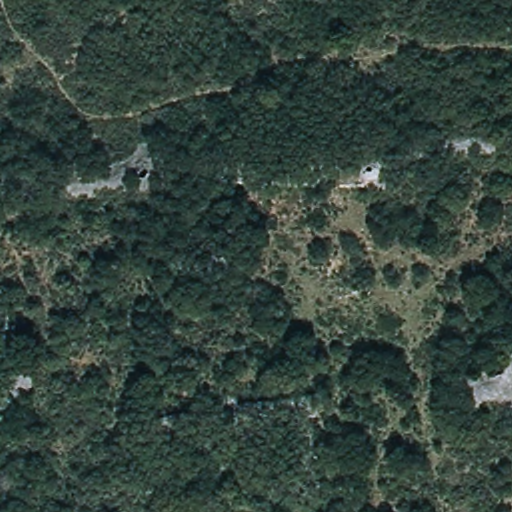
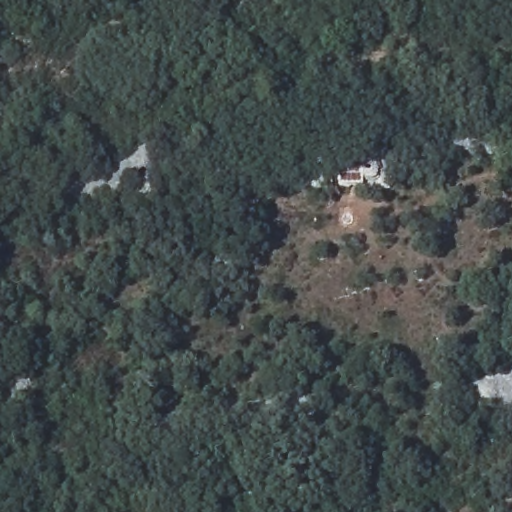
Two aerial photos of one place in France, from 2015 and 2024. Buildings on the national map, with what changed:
unchanged [(369,156),(390,152),(392,181),(367,181),(343,184),(341,159),(369,156)]

